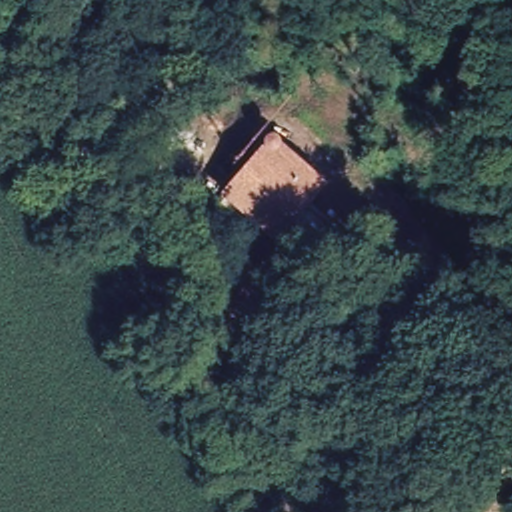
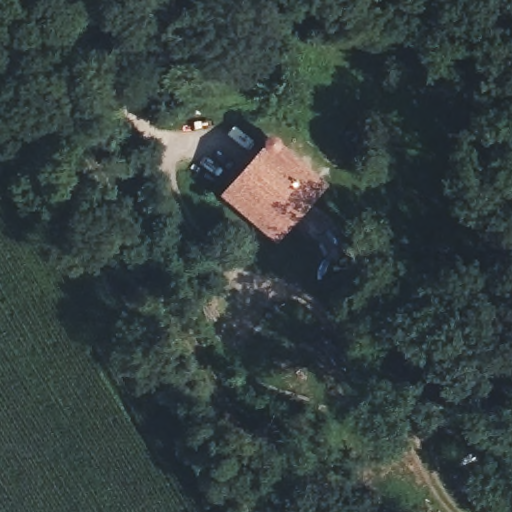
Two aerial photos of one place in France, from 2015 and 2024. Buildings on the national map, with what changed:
unchanged [(332,188),(279,247),(218,194),(270,135),(332,188)]

